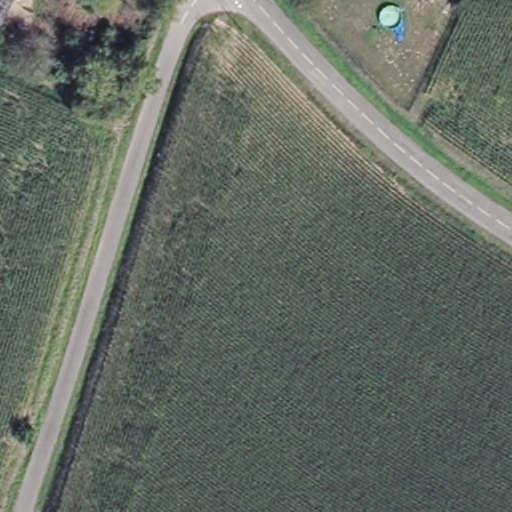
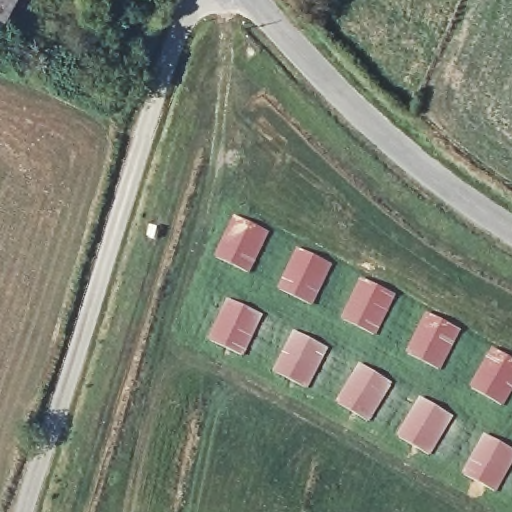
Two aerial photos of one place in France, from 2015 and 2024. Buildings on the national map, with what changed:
unchanged [(0,0),(16,0),(0,30),(0,0)]
new [(235,215),(270,233),(250,275),(214,256),(235,215)]
new [(296,247),(333,265),(313,307),(276,289),(296,247)]
new [(360,277),(397,297),(376,337),(340,319),(360,277)]
new [(208,341),(226,298),(264,315),(244,357),(208,341)]
new [(426,312),(462,331),(441,371),(405,352),(426,312)]
new [(272,372),(293,330),(330,348),(308,389),(272,372)]
new [(492,348),(512,360),(512,393),(503,407),(468,387),(492,348)]
new [(336,402),(360,364),(393,386),(370,422),(336,402)]
new [(396,437),(420,397),(455,417),(431,456),(396,437)]
new [(484,433),(512,449),(512,467),(497,492),(461,473),(484,433)]

